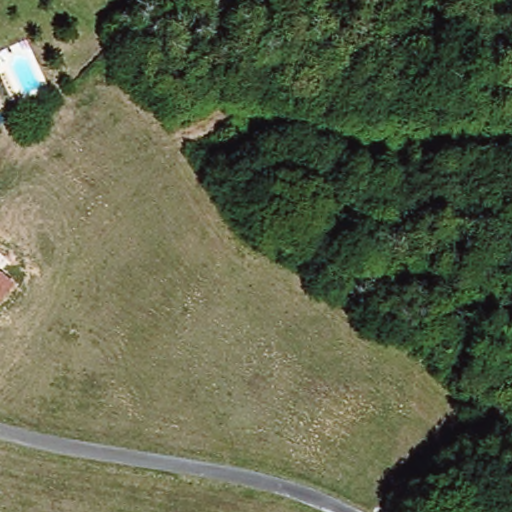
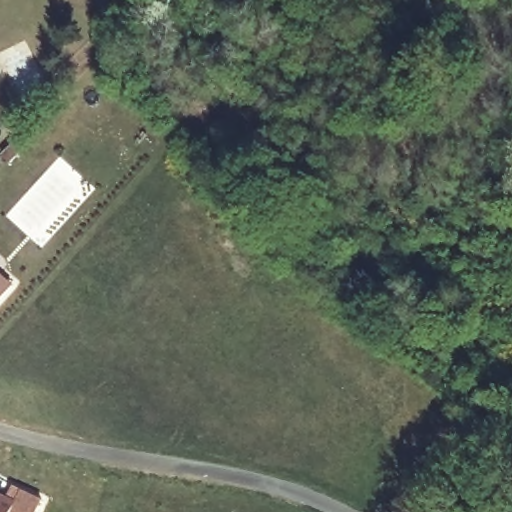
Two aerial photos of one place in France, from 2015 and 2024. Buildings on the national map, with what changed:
unchanged [(15,285),(0,302),(0,273),(15,285)]
new [(17,499),(7,494),(12,484),(44,499),(37,512),(11,512),(17,499)]
new [(7,494),(17,499),(11,512),(0,512),(0,492),(7,494)]

